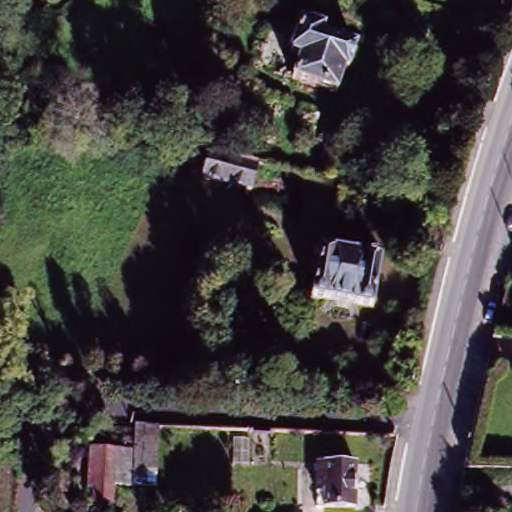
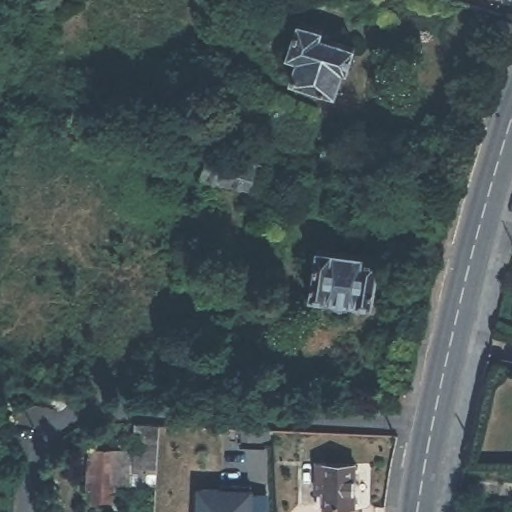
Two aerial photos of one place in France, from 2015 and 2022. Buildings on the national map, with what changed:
unchanged [(512,30),(511,32),(509,33),(508,34),(506,35),(504,35),(502,34),(500,33),(499,31),(498,30),(497,29),(497,26),(498,25),(498,23),(500,21),(501,20),(503,20),(505,20),(507,20),(508,20),(510,21),(511,23),(512,25),(512,29),(512,30)]
unchanged [(327,34),(325,41),(358,51),(341,96),(297,84),(304,62),(294,60),(304,27),(327,34)]
demolished [(6,50),(6,52),(6,54),(6,56),(5,57),(4,59),(2,60),(0,60),(0,45),(1,45),(3,46),(5,47),(6,49),(6,50)]
unchanged [(317,160),(322,147),(336,110),(351,116),(337,153),(332,166),(317,160)]
unchanged [(261,164),(255,186),(208,174),(198,171),(203,152),(213,154),(213,152),(261,164)]
unchanged [(383,259),(372,305),(311,291),(322,245),(383,259)]
unchanged [(141,424),(164,425),(161,472),(161,484),(161,485),(140,485),(133,485),(134,450),(135,423),(141,424)]
unchanged [(118,484),(116,502),(98,501),(98,487),(92,486),(94,464),(94,448),(101,448),(134,450),(133,485),(118,484)]
unchanged [(329,505),(329,492),(319,492),(320,461),(329,462),(359,462),(358,505),(329,505)]
new [(231,490),(221,489),(222,484),(231,485),(251,485),(250,512),(200,512),(201,488),(231,490)]

